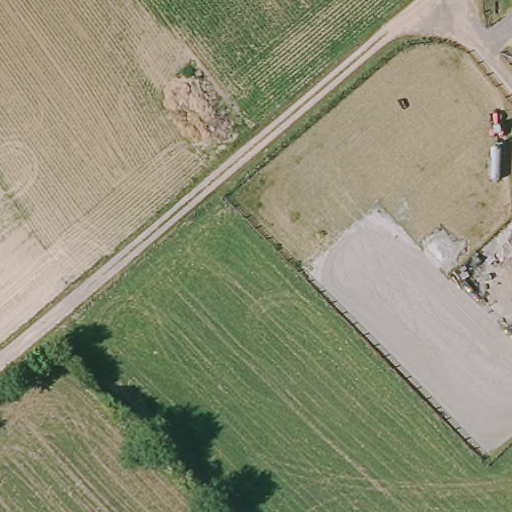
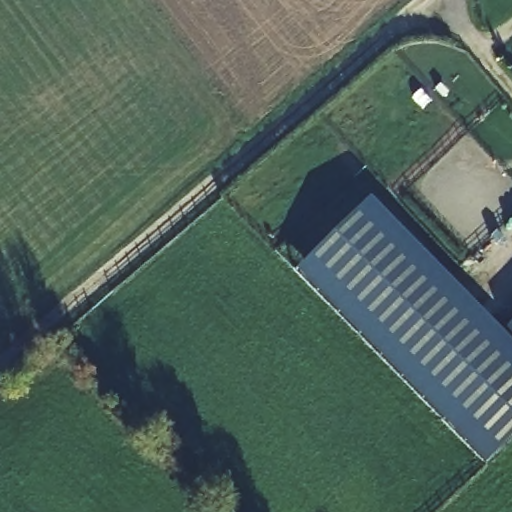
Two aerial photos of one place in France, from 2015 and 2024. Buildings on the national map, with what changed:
new [(486,461),(299,271),(369,200),(512,346),(512,436),(486,461)]
new [(508,329),(512,325),(512,334),(508,329)]

